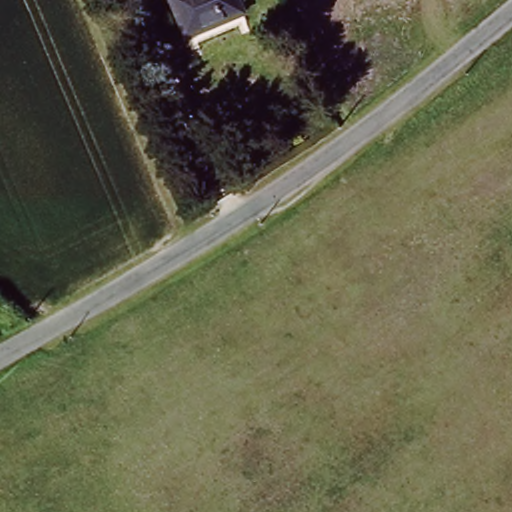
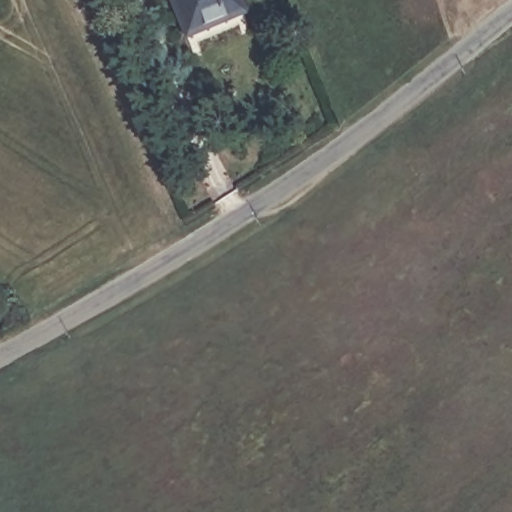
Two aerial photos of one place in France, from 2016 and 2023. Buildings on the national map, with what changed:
unchanged [(235,0),(242,16),(181,42),(164,0),(235,0)]

